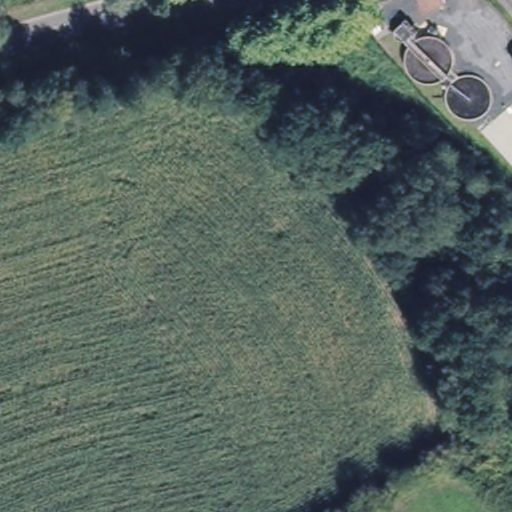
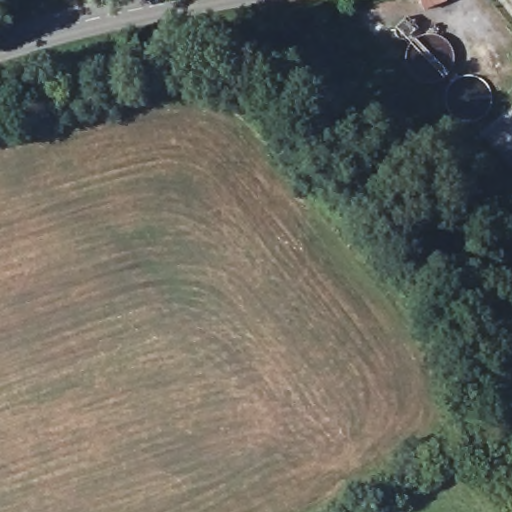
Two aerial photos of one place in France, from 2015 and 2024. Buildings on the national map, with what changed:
unchanged [(424,6),(421,0),(448,0),(424,6)]

